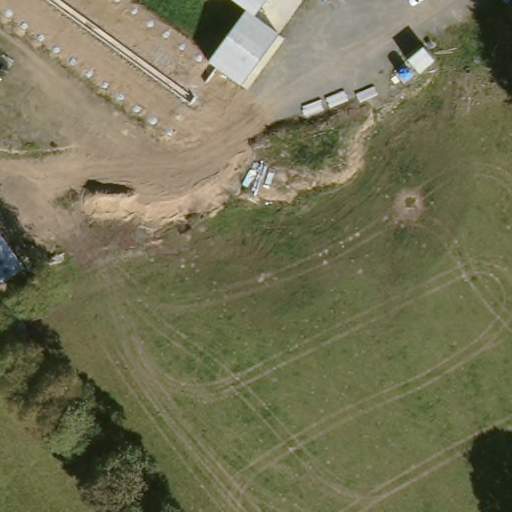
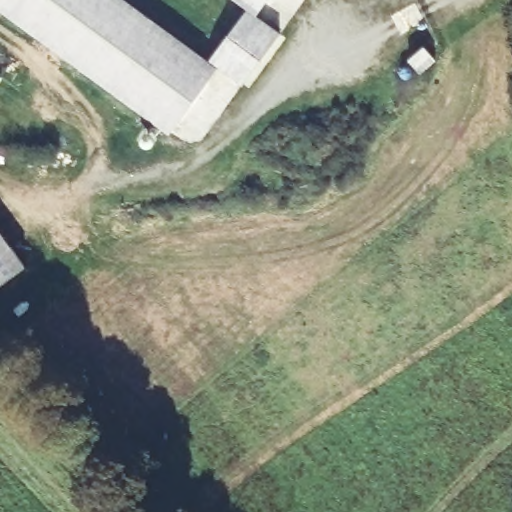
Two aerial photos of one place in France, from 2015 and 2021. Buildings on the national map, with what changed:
new [(169,134),(0,10),(0,0),(124,0),(209,62),(217,68),(169,134)]
unchanged [(279,33),(241,84),(209,62),(246,9),(232,0),(266,0),(256,14),(279,33)]
unchanged [(0,285),(0,233),(24,267),(0,285)]

